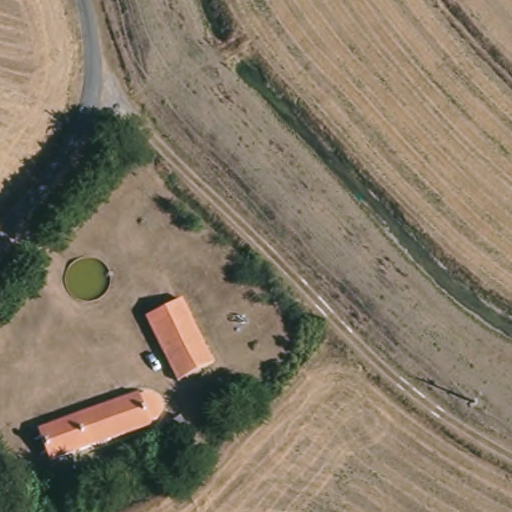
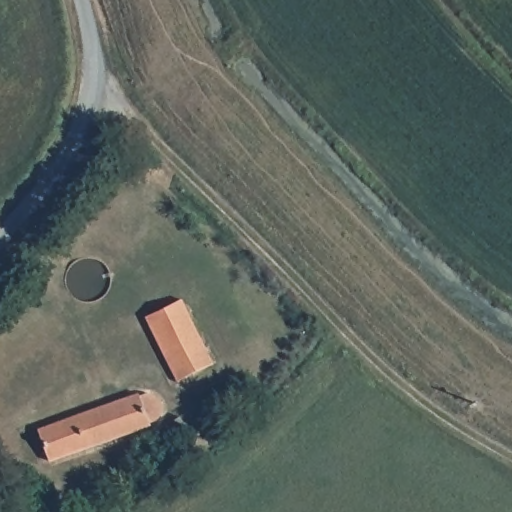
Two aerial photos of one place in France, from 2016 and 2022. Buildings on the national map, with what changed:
unchanged [(186,308),(212,367),(178,381),(153,322),(186,308)]
unchanged [(141,400),(144,398),(151,397),(158,399),(161,403),(164,409),(163,416),(159,420),(154,423),(151,425),(151,427),(51,465),(39,434),(140,397),(141,400)]
unchanged [(188,402),(203,419),(190,431),(174,413),(188,402)]

